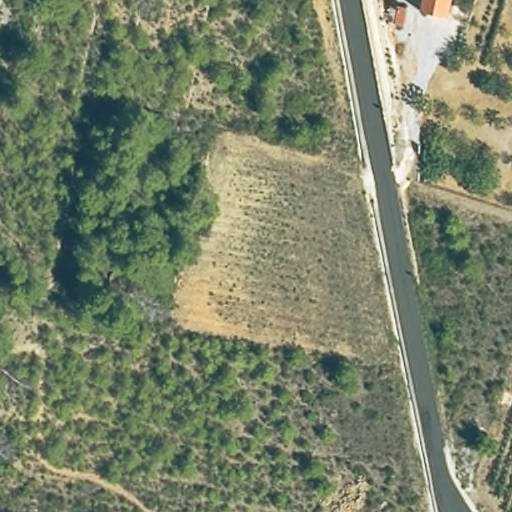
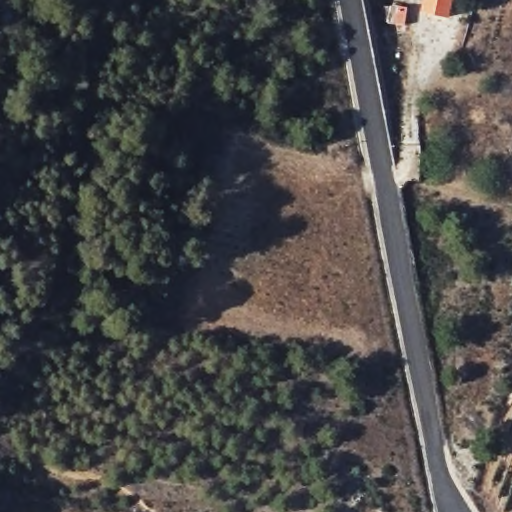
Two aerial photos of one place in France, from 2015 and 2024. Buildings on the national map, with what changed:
unchanged [(422,0),(451,0),(449,19),(420,16),(422,0)]

